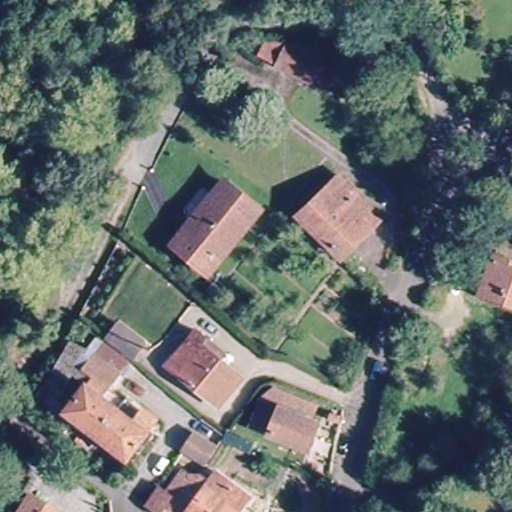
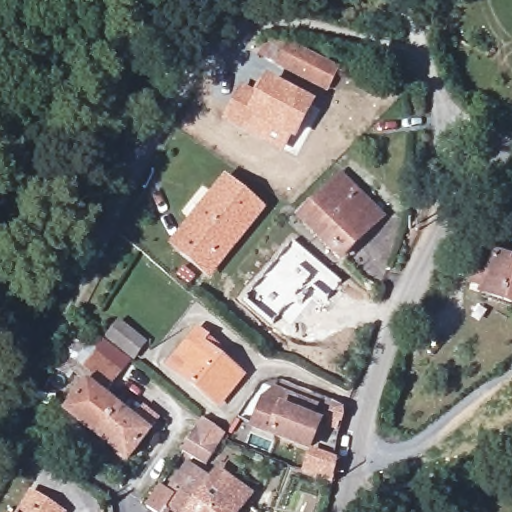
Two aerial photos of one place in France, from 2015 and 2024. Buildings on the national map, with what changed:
unchanged [(330,69),(320,89),(291,74),(277,66),(285,50),(300,58),(302,54),(330,69)]
new [(242,85),(253,91),(263,75),(316,102),(294,143),(291,141),(284,153),(222,119),(242,85)]
unchanged [(340,179),(381,219),(343,258),(301,215),(340,179)]
unchanged [(207,273),(172,244),(225,181),(260,210),(207,273)]
new [(341,284),(327,301),(306,284),(273,323),(245,299),(291,243),(341,284)]
unchanged [(478,284),(466,280),(474,246),(487,252),(512,260),(512,307),(477,295),(478,284)]
unchanged [(196,339),(237,372),(212,403),(163,361),(193,325),(202,332),(196,339)]
unchanged [(108,349),(121,334),(146,354),(133,370),(108,349)]
unchanged [(53,417),(37,408),(70,353),(83,361),(53,417)]
unchanged [(102,405),(132,431),(142,420),(155,431),(147,441),(149,443),(126,472),(65,423),(87,393),(77,385),(98,361),(123,381),(102,405)]
unchanged [(316,452),(279,437),(263,431),(273,407),(288,413),(325,428),(316,452)]
unchanged [(190,433),(212,446),(199,463),(178,451),(190,433)]
unchanged [(159,490),(177,468),(181,472),(190,479),(195,473),(204,480),(212,470),(247,497),(236,512),(168,512),(161,507),(158,512),(148,512),(139,506),(154,486),(159,490)]
unchanged [(32,500),(52,512),(24,512),(32,500)]

